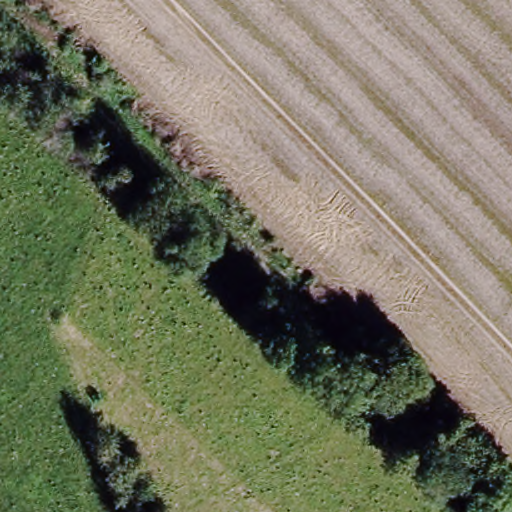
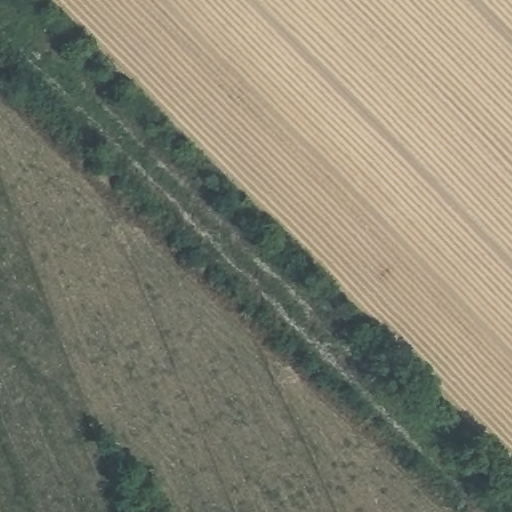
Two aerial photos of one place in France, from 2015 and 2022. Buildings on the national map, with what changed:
[]

